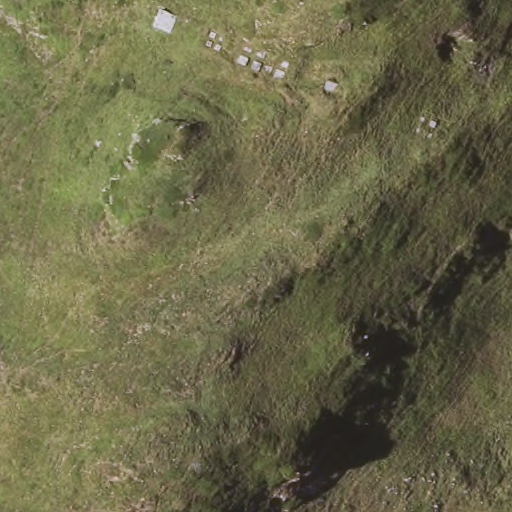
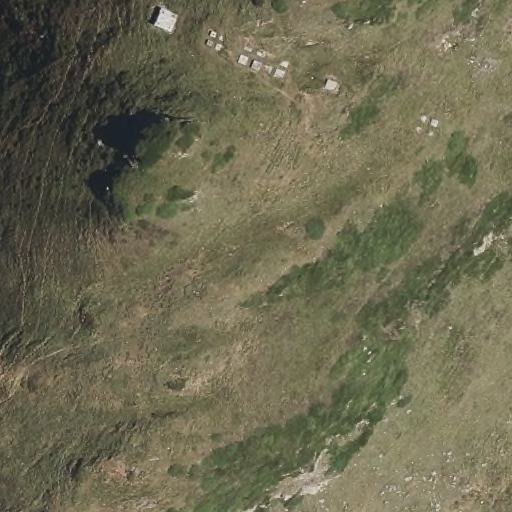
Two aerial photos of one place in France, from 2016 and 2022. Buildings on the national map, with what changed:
unchanged [(161,8),(178,16),(172,32),(155,25),(161,8)]

